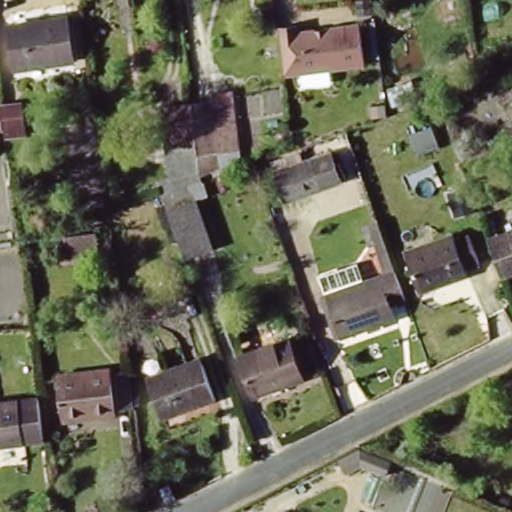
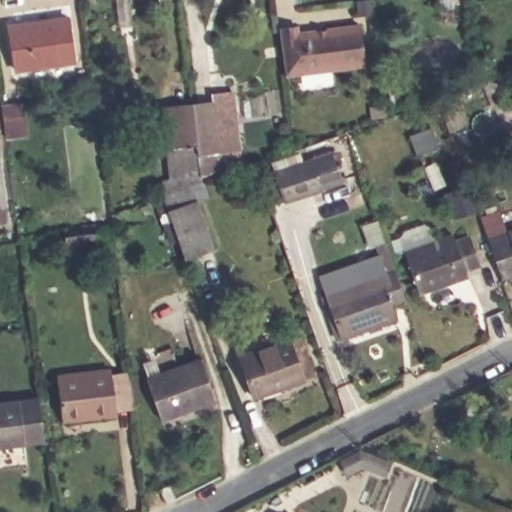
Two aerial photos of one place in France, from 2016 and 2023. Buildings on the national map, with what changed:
unchanged [(70,12),(74,54),(12,62),(7,22),(70,12)]
unchanged [(274,82),(271,37),(349,29),(354,73),(274,82)]
unchanged [(400,63),(402,75),(390,77),(388,64),(400,63)]
unchanged [(168,207),(152,105),(212,100),(212,91),(236,91),(242,150),(224,151),(225,173),(188,174),(189,203),(199,201),(215,249),(185,256),(168,207)]
unchanged [(22,133),(2,135),(0,116),(0,100),(17,98),(22,133)]
unchanged [(265,176),(274,173),(271,163),(299,154),(302,162),(337,150),(349,182),(276,208),(265,176)]
unchanged [(467,267),(470,275),(420,290),(407,250),(486,225),(489,235),(496,258),(467,267)]
unchanged [(65,259),(61,232),(114,227),(116,251),(65,259)]
unchanged [(502,277),(496,258),(489,235),(512,228),(512,274),(502,277)]
unchanged [(390,302),(394,315),(337,333),(324,291),(395,268),(404,297),(390,302)]
unchanged [(300,377),(301,381),(252,396),(239,356),(300,336),(312,373),(300,377)]
unchanged [(202,360),(216,401),(160,419),(147,377),(202,360)]
unchanged [(134,412),(91,418),(90,413),(62,417),(56,376),(108,369),(109,373),(129,370),(134,412)]
unchanged [(48,439),(0,446),(0,401),(42,395),(48,439)]

